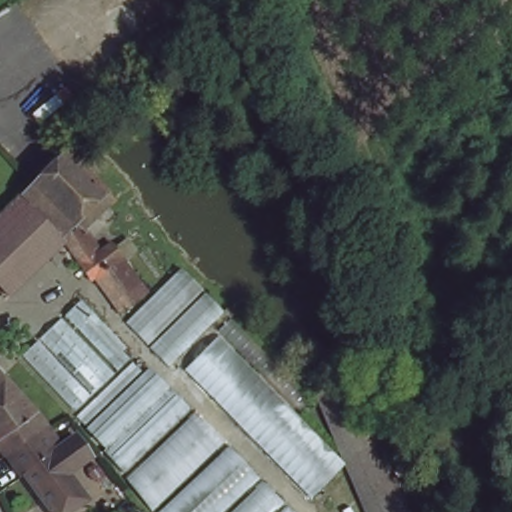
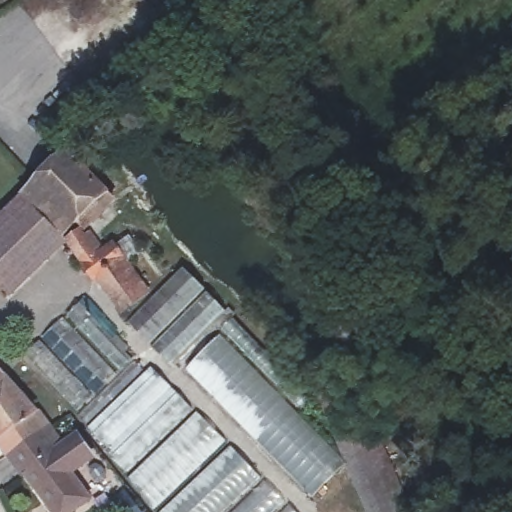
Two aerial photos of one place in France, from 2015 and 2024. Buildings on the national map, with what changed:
unchanged [(40,175),(69,149),(77,152),(82,159),(87,164),(115,194),(89,219),(82,213),(65,231),(40,205),(0,269),(0,212),(15,199),(40,175)]
unchanged [(65,231),(70,238),(12,296),(0,285),(0,269),(40,205),(65,231)]
unchanged [(105,267),(100,271),(73,235),(85,224),(105,247),(119,235),(129,249),(105,267)]
unchanged [(151,281),(127,299),(105,267),(129,249),(151,281)]
unchanged [(127,322),(185,268),(205,290),(147,341),(127,322)]
unchanged [(213,320),(179,353),(167,364),(152,347),(209,293),(224,310),(213,320)]
unchanged [(52,336),(74,317),(124,372),(102,392),(52,336)]
unchanged [(213,320),(334,442),(342,461),(317,491),(179,353),(213,320)]
unchanged [(32,355),(49,340),(99,396),(94,400),(82,411),(32,355)]
unchanged [(147,360),(192,407),(127,465),(84,416),(147,360)]
unchanged [(33,417),(0,436),(0,380),(2,382),(33,417)]
unchanged [(364,512),(342,461),(334,442),(315,397),(352,382),(406,512),(364,512)]
unchanged [(158,512),(128,477),(197,413),(298,512),(158,512)]
unchanged [(37,415),(60,446),(21,471),(0,444),(0,436),(33,417),(37,415)]
unchanged [(77,435),(92,456),(69,473),(88,502),(72,512),(51,512),(21,471),(60,446),(77,435)]

